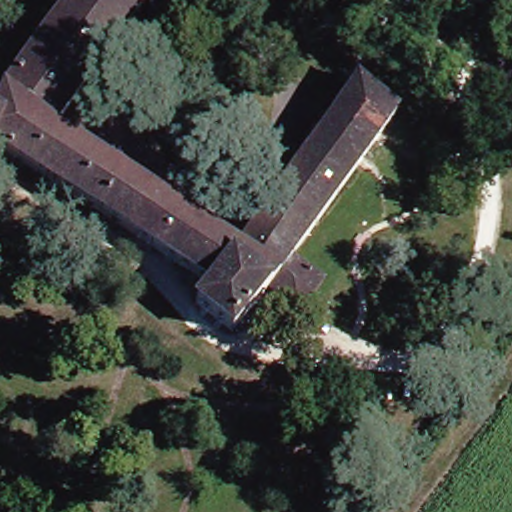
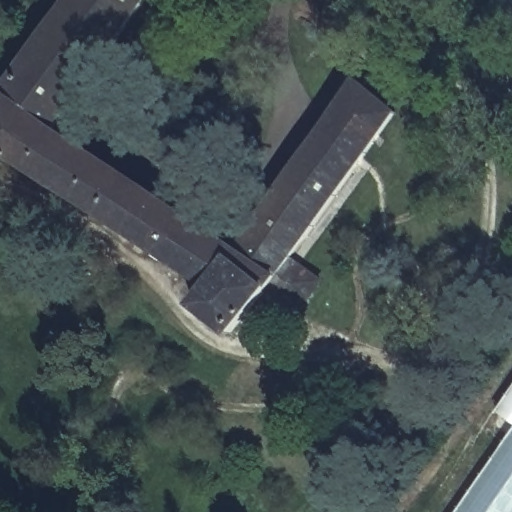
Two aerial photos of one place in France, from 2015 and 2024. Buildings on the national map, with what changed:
unchanged [(57,128),(241,246),(355,78),(399,109),(359,168),(391,190),(370,220),(358,211),(315,268),(326,278),(304,310),(267,285),(230,334),(191,308),(204,291),(136,244),(0,152),(0,92),(63,0),(145,0),(57,128)]
new [(497,411),(512,389),(512,422),(497,411)]
new [(456,512),(512,430),(512,512),(456,512)]

